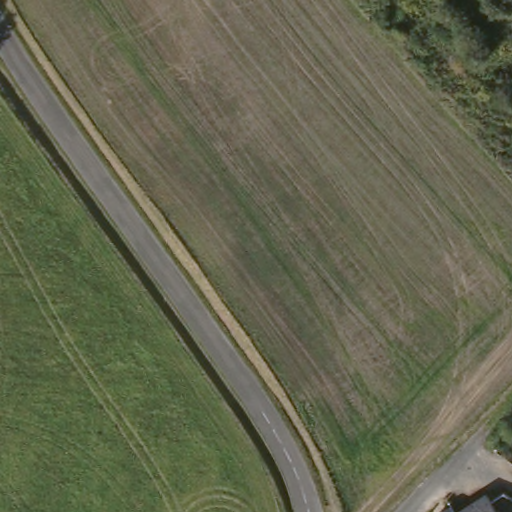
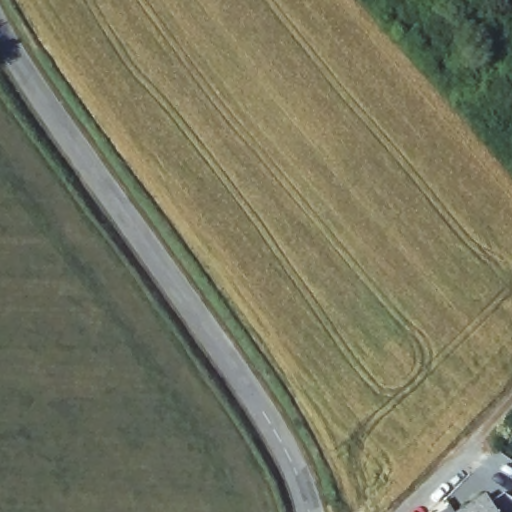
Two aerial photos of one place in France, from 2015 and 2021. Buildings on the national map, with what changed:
unchanged [(494,493),(506,510),(509,508),(511,512),(467,512),(466,510),(494,493)]
unchanged [(466,510),(467,512),(447,512),(462,503),(466,510)]

